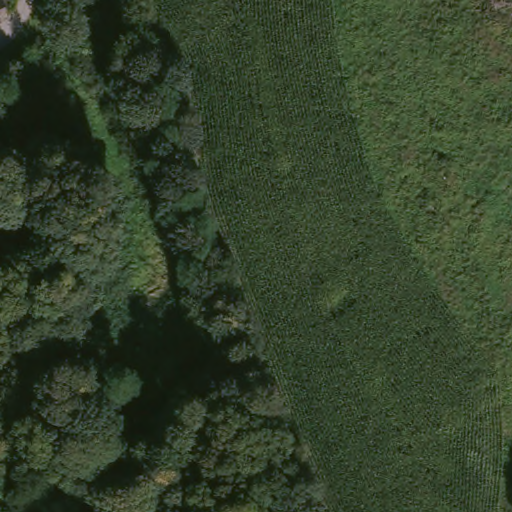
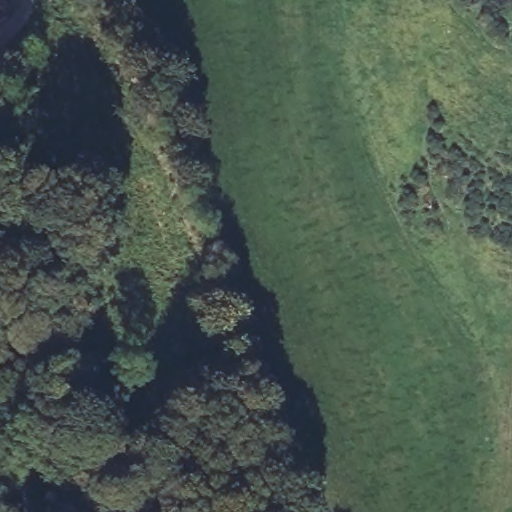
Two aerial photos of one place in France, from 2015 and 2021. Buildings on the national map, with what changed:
unchanged [(0,0),(6,0),(6,1),(0,6),(0,0)]

